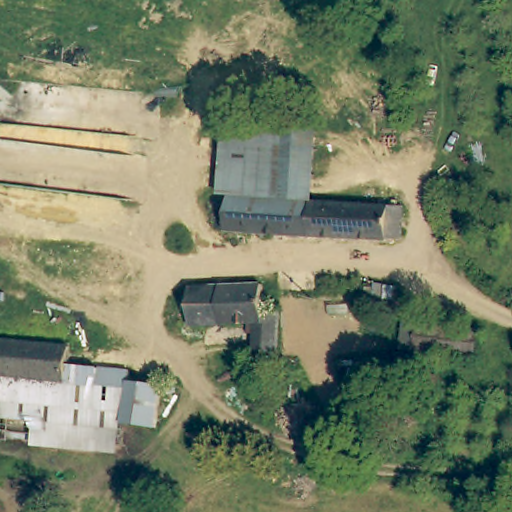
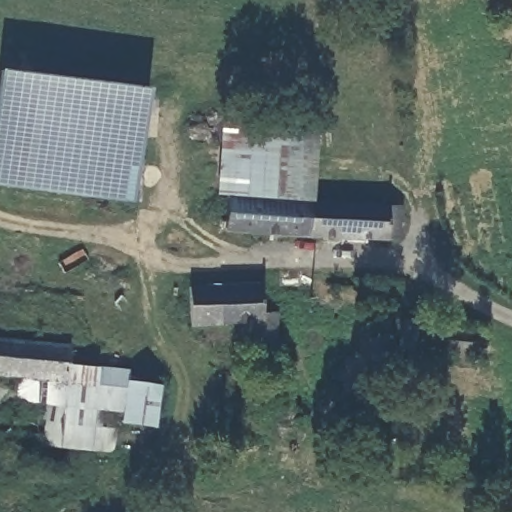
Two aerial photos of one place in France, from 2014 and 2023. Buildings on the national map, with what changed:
new [(132,203),(0,186),(0,70),(149,88),(132,203)]
unchanged [(221,114),(312,122),(306,203),(225,197),(215,196),(221,114)]
unchanged [(398,237),(387,244),(256,234),(222,232),(225,197),(306,203),(400,210),(398,237)]
unchanged [(255,310),(255,314),(273,314),(274,361),(270,361),(272,367),(271,372),(270,375),(265,377),(259,377),(255,374),(254,368),(255,362),(249,362),(250,336),(241,336),(241,327),(187,327),(189,287),(254,288),(255,310)]
unchanged [(367,287),(378,287),(378,302),(366,301),(367,287)]
unchanged [(406,324),(485,330),(482,356),(404,347),(406,324)]
unchanged [(62,363),(62,375),(0,371),(0,338),(64,343),(62,363)]
new [(122,378),(120,418),(117,453),(35,447),(37,421),(32,421),(34,405),(14,403),(16,373),(62,375),(62,365),(97,368),(129,370),(129,378),(122,378)]
unchanged [(155,379),(152,420),(120,418),(122,378),(155,379)]

